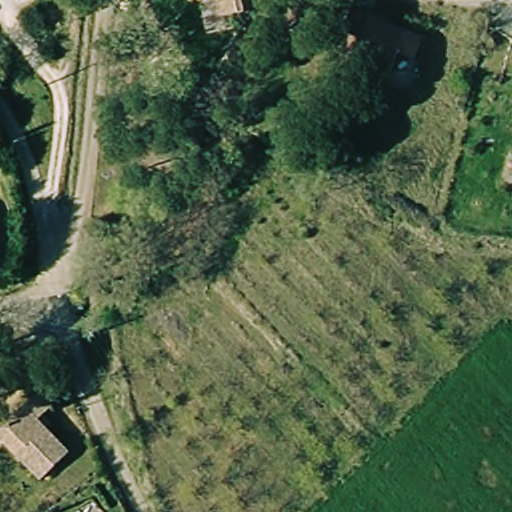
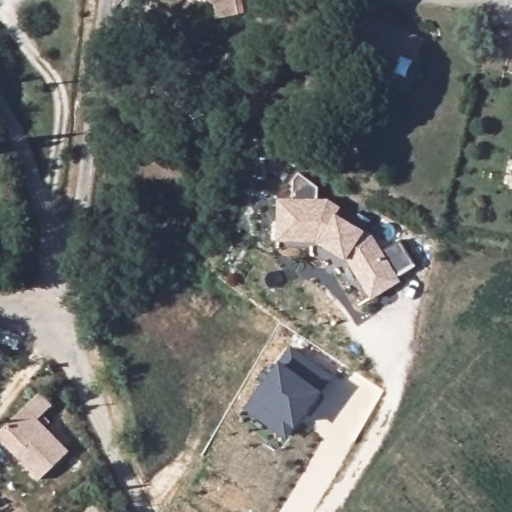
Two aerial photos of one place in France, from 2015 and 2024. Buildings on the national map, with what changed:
unchanged [(214,10),(211,1),(209,0),(243,0),(244,3),(214,10)]
unchanged [(357,41),(342,36),(349,11),(425,38),(415,65),(397,58),(390,77),(350,59),(357,41)]
new [(295,180),(301,173),(319,188),(318,198),(330,199),(342,208),(338,214),(365,232),(375,237),(385,252),(400,242),(415,266),(399,277),(402,282),(372,299),(347,260),(318,242),(278,242),(278,199),(295,199),(295,180)]
new [(254,395),(279,361),(290,344),(333,376),(322,392),(296,427),(287,439),(245,408),(254,395)]
unchanged [(23,406),(37,391),(53,406),(40,421),(67,446),(50,469),(42,479),(26,464),(22,461),(0,440),(0,434),(7,426),(23,406)]

